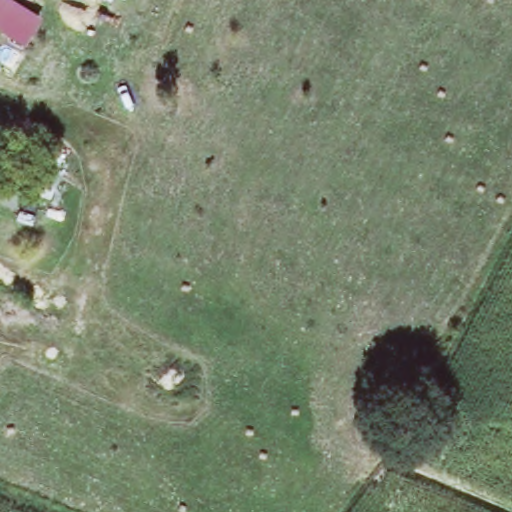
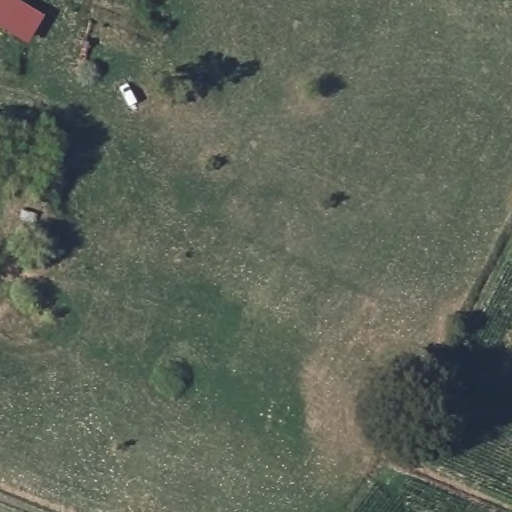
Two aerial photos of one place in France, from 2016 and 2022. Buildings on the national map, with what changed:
unchanged [(28,46),(0,30),(0,0),(18,0),(43,16),(28,46)]

